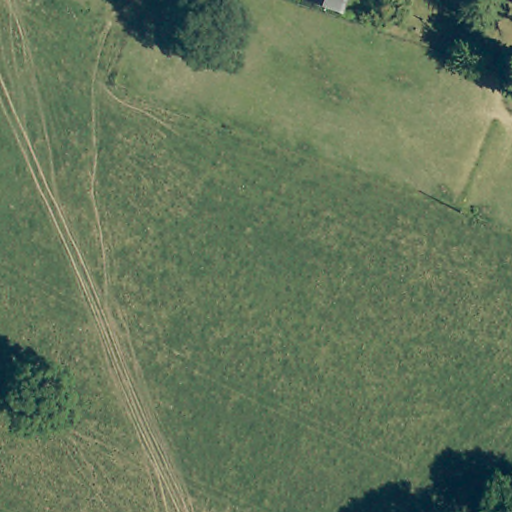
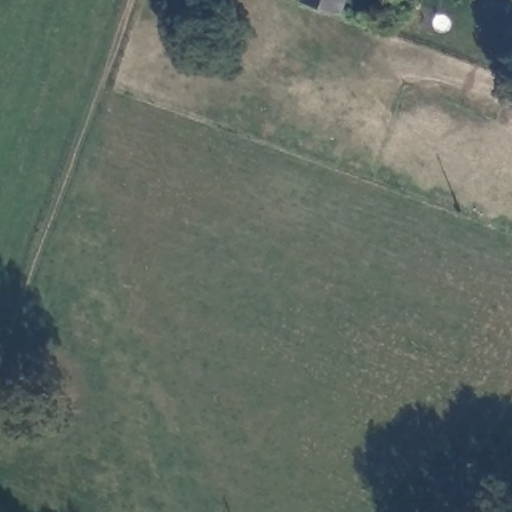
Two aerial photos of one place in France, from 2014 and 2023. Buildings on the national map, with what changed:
unchanged [(345,13),(310,0),(348,0),(345,13)]

